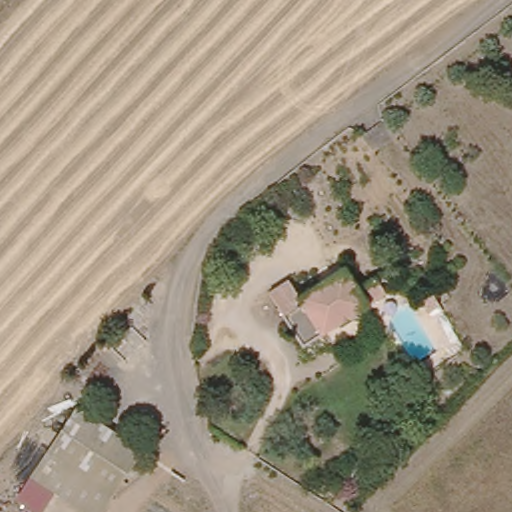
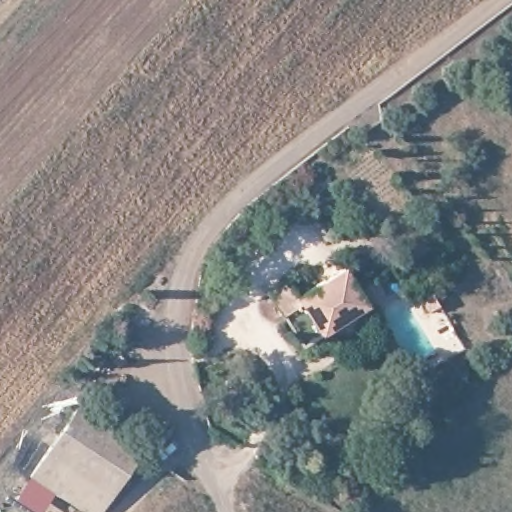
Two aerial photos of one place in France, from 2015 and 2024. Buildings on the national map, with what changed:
unchanged [(368,281),(376,297),(356,310),(294,348),(261,296),(281,283),(291,300),(334,272),(346,294),(368,281)]
unchanged [(112,488),(47,445),(76,402),(141,446),(112,488)]
unchanged [(112,488),(94,512),(92,512),(29,470),(47,445),(112,488)]

